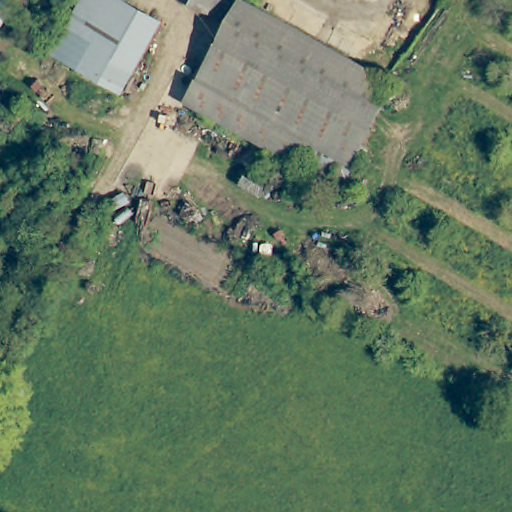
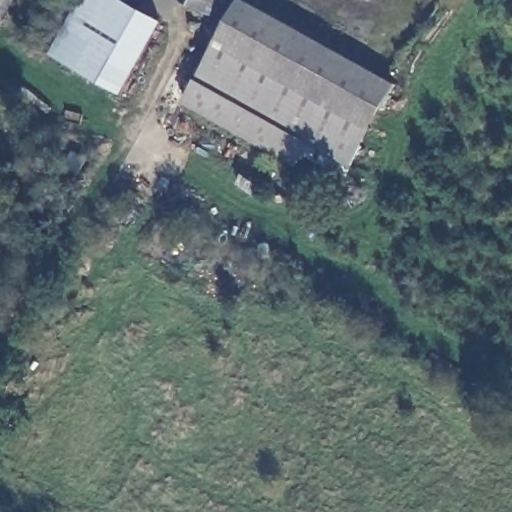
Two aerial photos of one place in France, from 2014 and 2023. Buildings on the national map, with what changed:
unchanged [(0,16),(0,0),(14,0),(5,18),(0,16)]
unchanged [(50,45),(76,0),(137,0),(167,17),(135,75),(127,88),(74,58),(50,45)]
unchanged [(230,8),(220,16),(191,0),(234,0),(230,8)]
unchanged [(234,0),(261,0),(294,17),(326,33),(390,66),(400,71),(372,118),(215,37),(230,8),(234,0)]
unchanged [(215,37),(372,118),(352,154),(307,132),(195,76),(215,37)]
unchanged [(295,156),(183,99),(195,76),(307,132),(295,156)]

